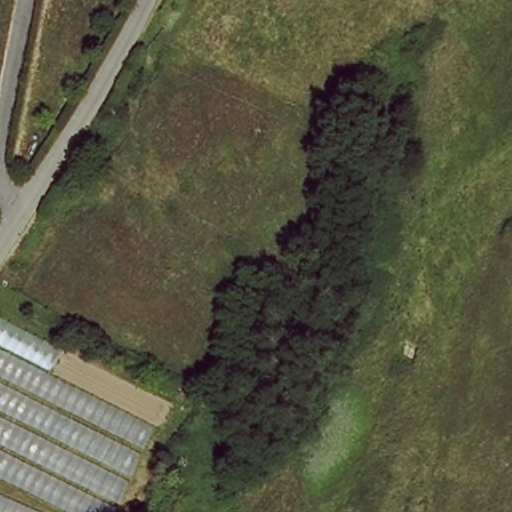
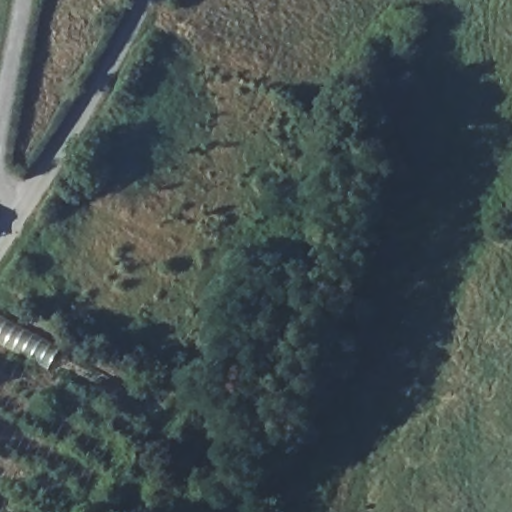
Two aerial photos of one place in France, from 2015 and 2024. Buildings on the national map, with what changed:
demolished [(120,512),(0,512),(0,321),(166,412),(120,512)]

